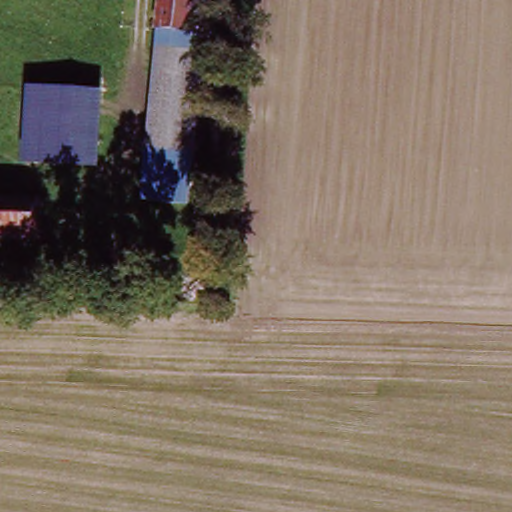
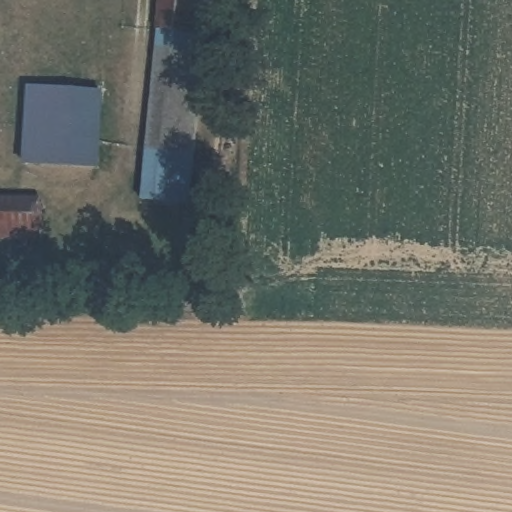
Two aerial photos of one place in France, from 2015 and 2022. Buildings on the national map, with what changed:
unchanged [(207,19),(207,28),(171,26),(172,17),(172,0),(208,0),(207,19)]
unchanged [(154,25),(171,26),(207,28),(199,207),(141,205),(150,59),(154,25)]
unchanged [(108,93),(103,169),(19,165),(26,89),(108,93)]
unchanged [(0,234),(0,195),(41,196),(40,236),(0,234)]

